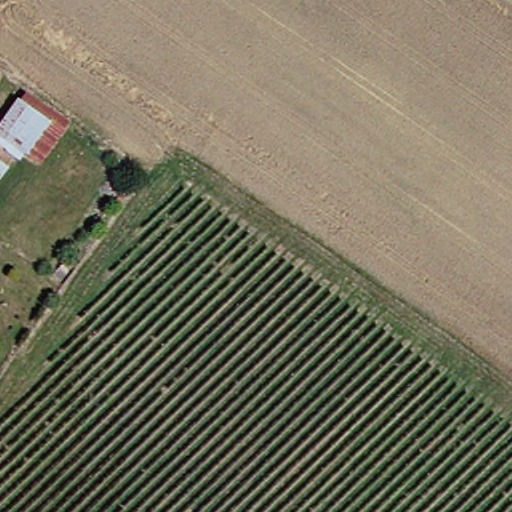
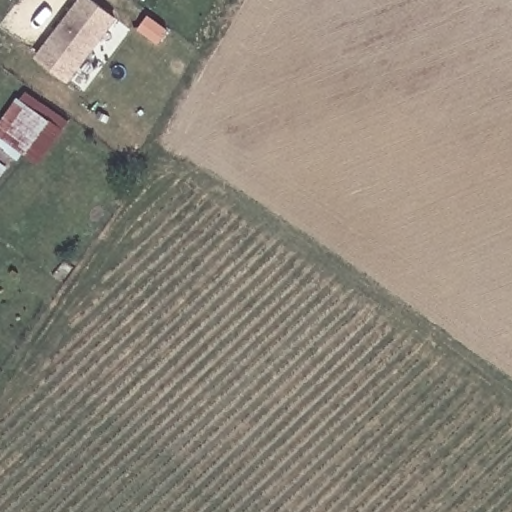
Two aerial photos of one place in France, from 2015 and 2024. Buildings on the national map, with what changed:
new [(90,0),(113,18),(65,79),(35,56),(78,0),(90,0)]
unchanged [(15,89),(59,118),(52,125),(26,163),(11,154),(8,158),(3,155),(0,159),(0,106),(8,96),(15,89)]

